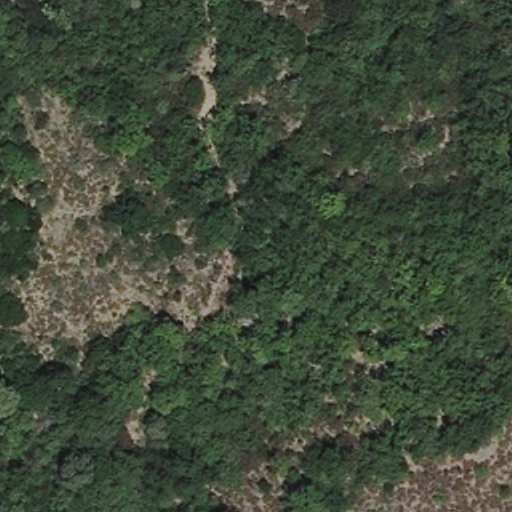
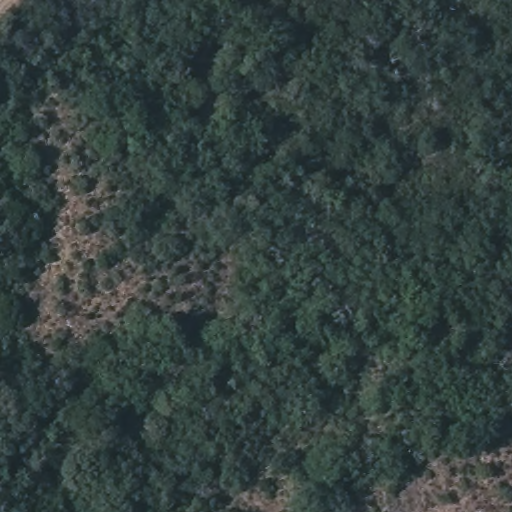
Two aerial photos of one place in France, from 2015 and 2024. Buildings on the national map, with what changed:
unchanged [(259,329),(237,319),(244,306),(264,314),(259,329)]

